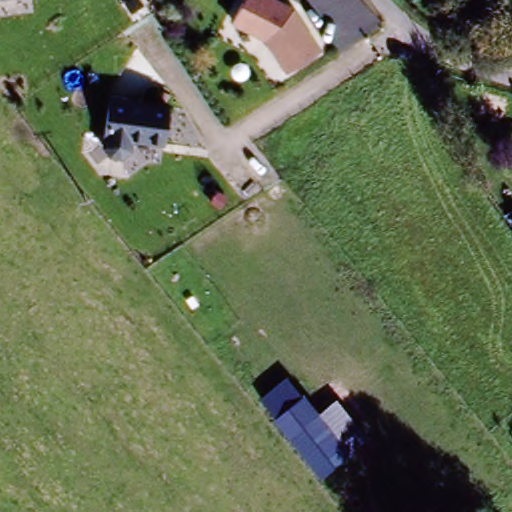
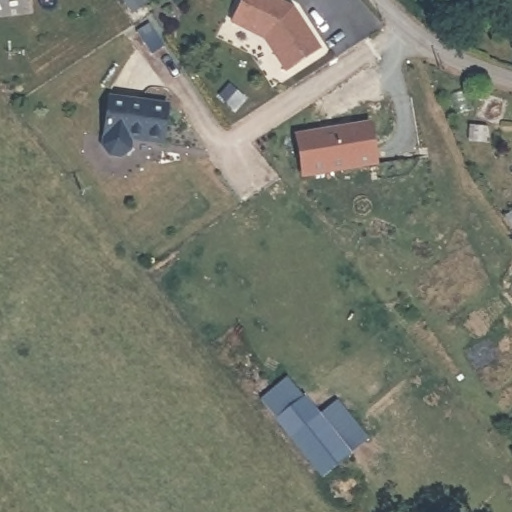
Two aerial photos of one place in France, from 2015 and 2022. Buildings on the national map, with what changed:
unchanged [(265,40),(233,22),(244,0),(275,0),(292,9),(319,50),(286,71),(265,40)]
unchanged [(173,105),(168,142),(137,139),(136,150),(126,157),(115,155),(109,146),(115,97),(173,105)]
new [(369,123),(379,167),(301,180),(294,136),(369,123)]
unchanged [(368,440),(323,478),(263,400),(288,377),(321,416),(336,402),(368,440)]

